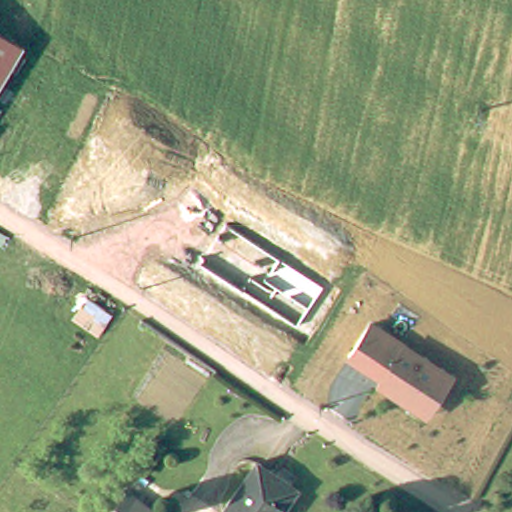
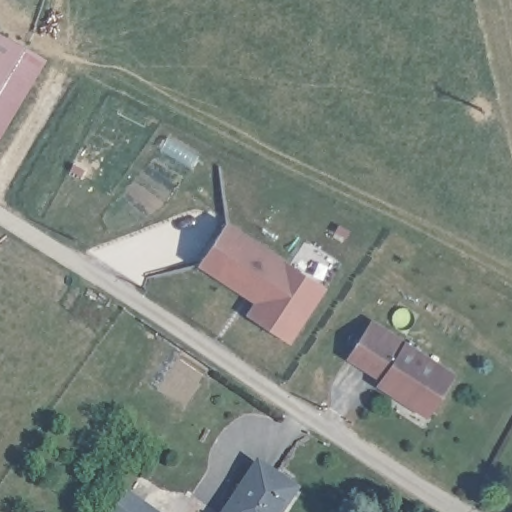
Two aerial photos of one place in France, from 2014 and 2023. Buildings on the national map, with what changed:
unchanged [(0,98),(0,28),(32,46),(0,98)]
new [(325,286),(289,342),(246,312),(254,301),(199,265),(228,220),(325,286)]
unchanged [(395,393),(379,382),(382,376),(350,354),(372,320),(454,375),(432,409),(428,415),(395,393)]
unchanged [(296,479),(274,512),(220,512),(259,454),(296,479)]
unchanged [(113,512),(126,490),(162,512),(113,512)]

